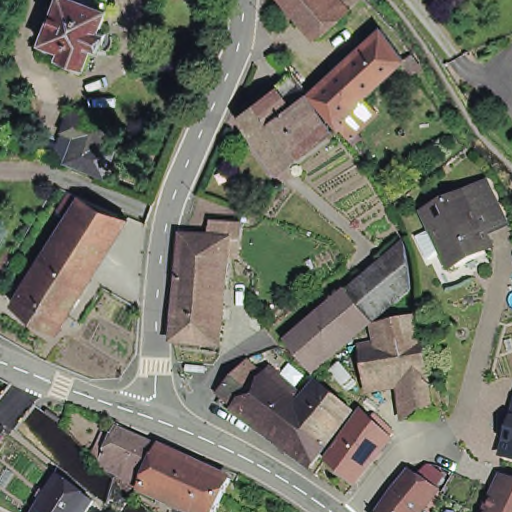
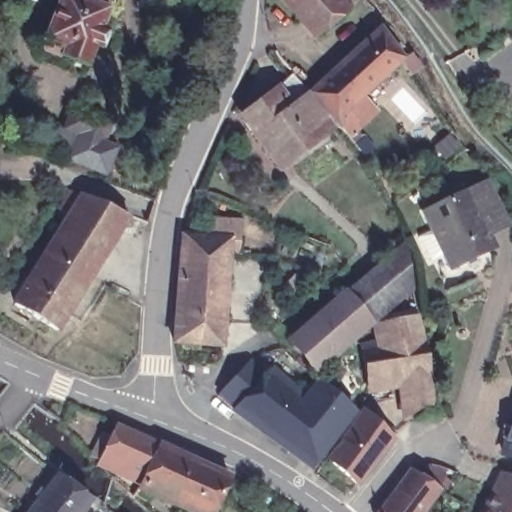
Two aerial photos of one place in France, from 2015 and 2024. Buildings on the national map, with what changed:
unchanged [(45,40),(57,0),(93,0),(106,4),(100,26),(106,28),(102,44),(96,42),(90,62),(65,55),(61,58),(47,53),(44,48),(46,40),(45,40)]
unchanged [(335,19),(318,33),(291,0),(319,0),(335,19)]
unchanged [(351,5),(335,19),(319,0),(347,0),(351,5)]
unchanged [(331,123),(332,122),(308,95),(307,95),(326,77),(328,73),(378,30),(400,60),(408,55),(416,69),(408,74),(407,73),(400,62),(367,91),(358,99),(367,107),(339,133),(331,123)]
unchanged [(275,89),(274,86),(288,74),(307,95),(308,95),(303,99),(312,109),(316,117),(326,130),(300,151),(261,100),(275,89)]
unchanged [(300,151),(277,168),(240,116),(261,100),(300,151)]
unchanged [(70,157),(75,137),(61,130),(70,111),(110,124),(104,140),(116,144),(107,168),(70,157)]
unchanged [(484,177),(500,210),(478,220),(489,242),(447,263),(420,208),(484,177)]
unchanged [(47,252),(70,215),(60,208),(66,198),(71,190),(82,196),(121,214),(84,274),(90,278),(77,300),(58,330),(15,304),(47,252)]
unchanged [(175,301),(180,236),(206,239),(208,218),(238,221),(237,242),(227,241),(225,241),(220,304),(175,301)]
unchanged [(367,385),(361,347),(380,344),(379,341),(375,327),(372,323),(371,324),(355,338),(342,349),(317,370),(292,339),(316,319),(329,308),(347,292),(355,286),(405,243),(412,289),(391,307),(396,312),(397,322),(418,317),(422,337),(428,375),(431,397),(435,415),(414,418),(407,379),(367,385)]
unchanged [(175,301),(220,304),(216,344),(171,341),(175,301)]
unchanged [(268,435),(234,408),(237,406),(222,392),(240,373),(250,362),(265,377),(272,369),(304,398),(268,435)]
unchanged [(304,398),(318,380),(355,411),(340,430),(304,398)]
unchanged [(311,467),(268,435),(304,398),(340,430),(311,467)]
unchanged [(495,442),(512,400),(512,449),(495,442)]
unchanged [(370,419),(392,439),(357,482),(330,460),(362,416),(364,413),(369,417),(370,419)]
unchanged [(215,512),(193,512),(135,489),(141,474),(96,461),(112,422),(237,469),(215,512)]
unchanged [(57,469),(91,494),(77,512),(25,512),(26,511),(57,469)]
unchanged [(438,490),(422,512),(381,512),(392,496),(412,470),(438,490)]
unchanged [(482,512),(488,501),(496,484),(498,485),(505,471),(512,473),(512,512),(482,512)]
unchanged [(449,512),(439,512),(443,507),(449,512)]

